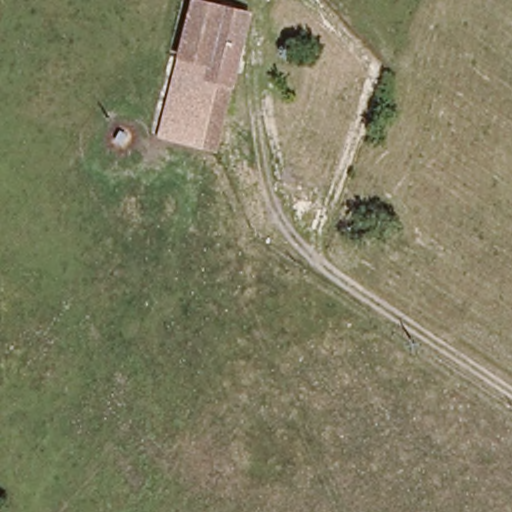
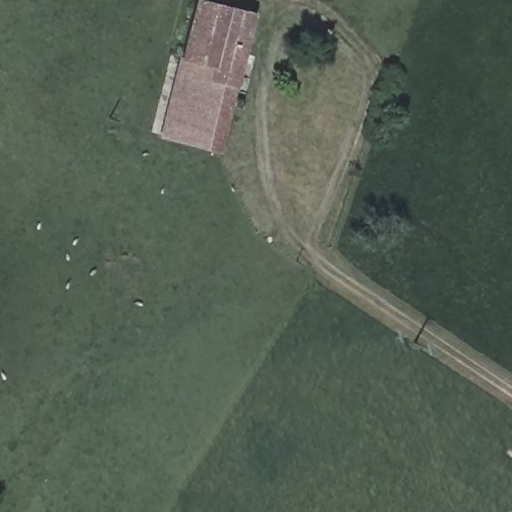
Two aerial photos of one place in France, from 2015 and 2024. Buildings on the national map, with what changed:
unchanged [(181,53),(193,0),(222,7),(209,60),(181,53)]
unchanged [(164,124),(181,53),(209,60),(222,7),(249,13),(217,146),(161,134),(164,124)]

